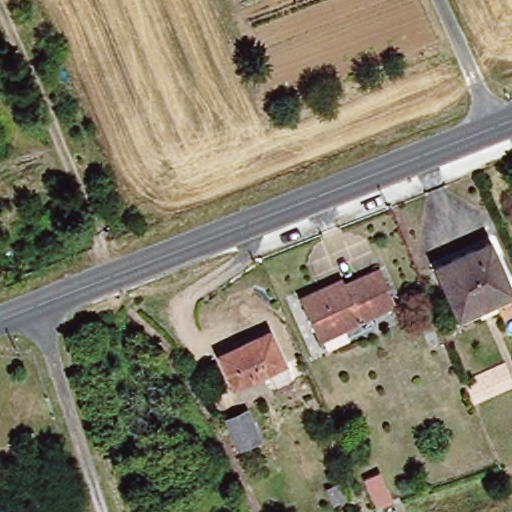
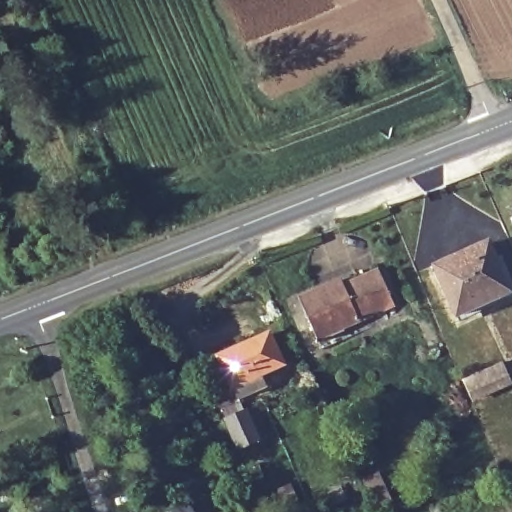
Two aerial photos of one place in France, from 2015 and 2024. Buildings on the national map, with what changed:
unchanged [(435,271),(491,247),(512,295),(512,298),(457,322),(435,271)]
unchanged [(391,306),(318,337),(301,297),(337,281),(340,286),(375,271),(391,306)]
unchanged [(236,385),(223,354),(272,333),(285,364),(236,385)]
unchanged [(461,383),(500,367),(503,377),(478,387),(481,392),(467,398),(461,383)]
unchanged [(240,450),(227,421),(247,412),(261,441),(240,450)]

